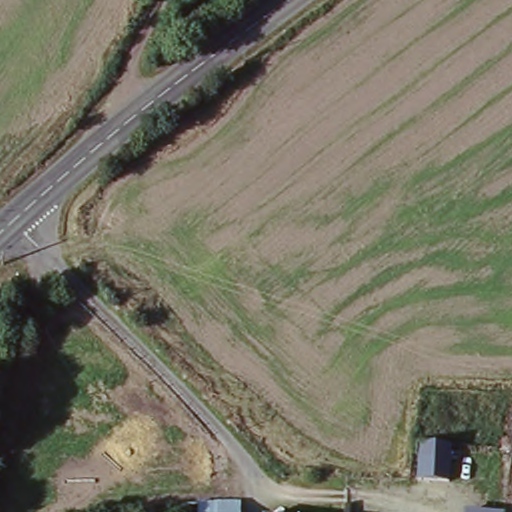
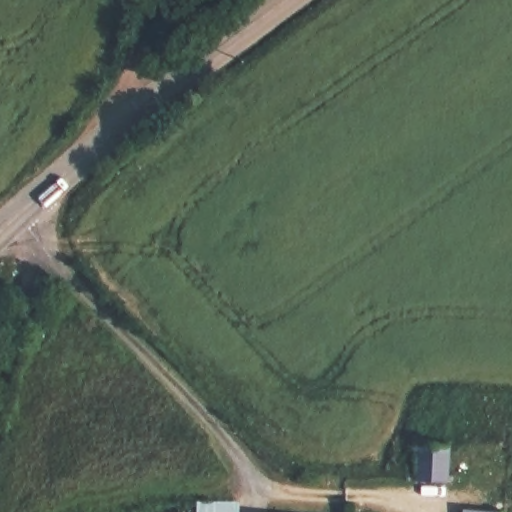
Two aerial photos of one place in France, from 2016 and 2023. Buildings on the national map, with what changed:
unchanged [(424,444),(455,446),(454,462),(453,482),(423,480),(424,444)]
unchanged [(240,512),(198,512),(198,503),(240,502),(240,512)]
unchanged [(465,512),(459,512),(459,511),(465,512)]

